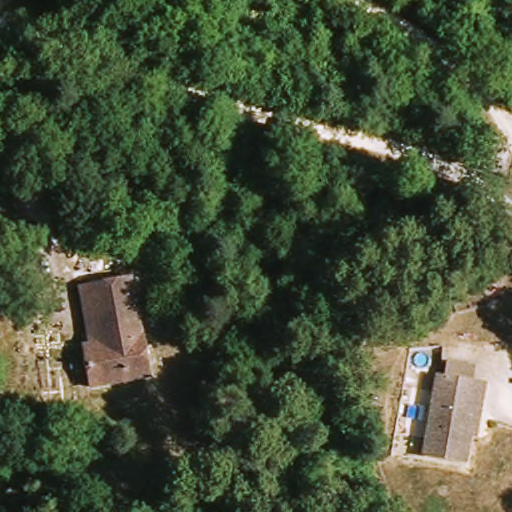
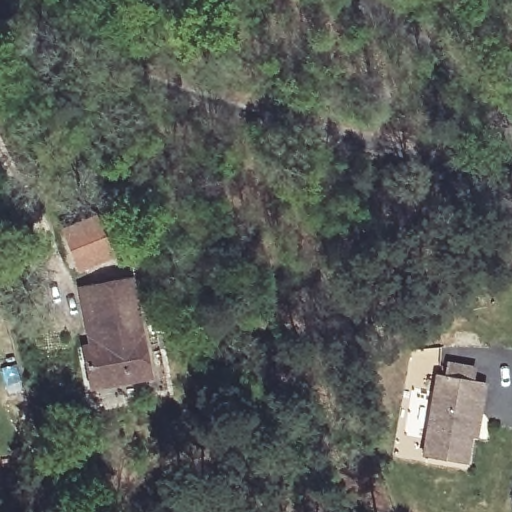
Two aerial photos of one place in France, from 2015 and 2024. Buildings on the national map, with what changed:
new [(97,216),(114,258),(80,272),(62,230),(97,216)]
unchanged [(152,374),(95,392),(82,349),(85,348),(71,296),(83,291),(125,279),(152,374)]
unchanged [(473,443),(470,468),(426,462),(434,406),(438,380),(475,385),(487,386),(482,415),(478,444),(473,443)]

